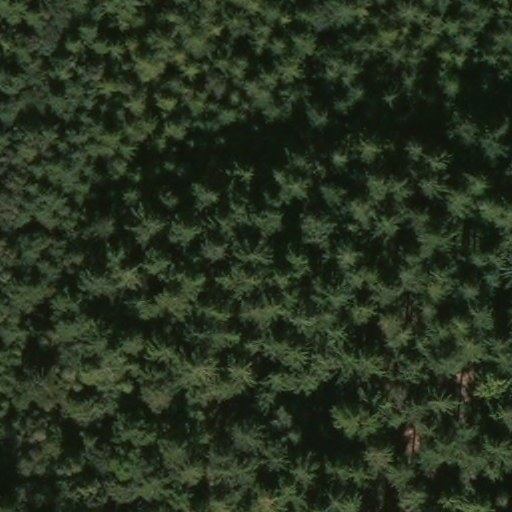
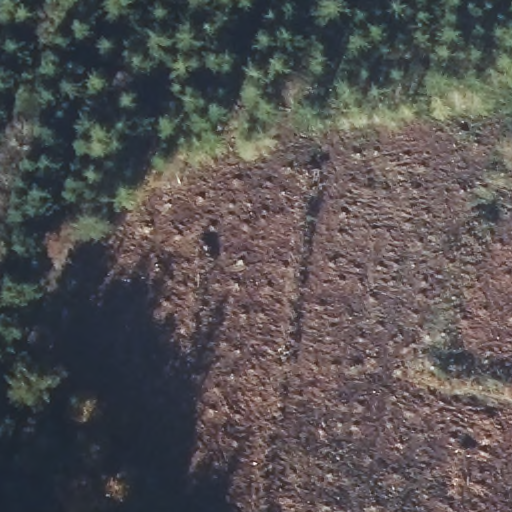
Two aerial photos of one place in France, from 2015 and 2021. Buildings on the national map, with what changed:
[]

